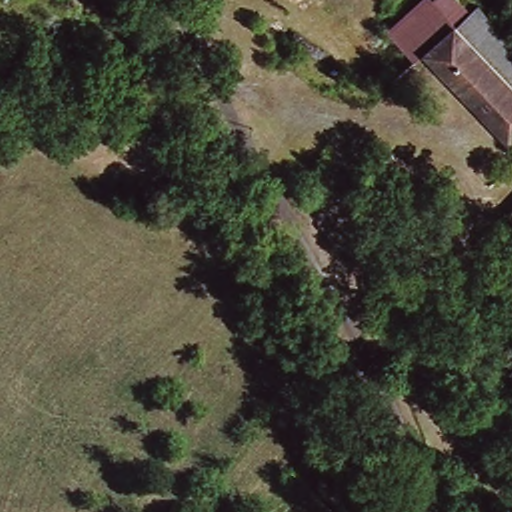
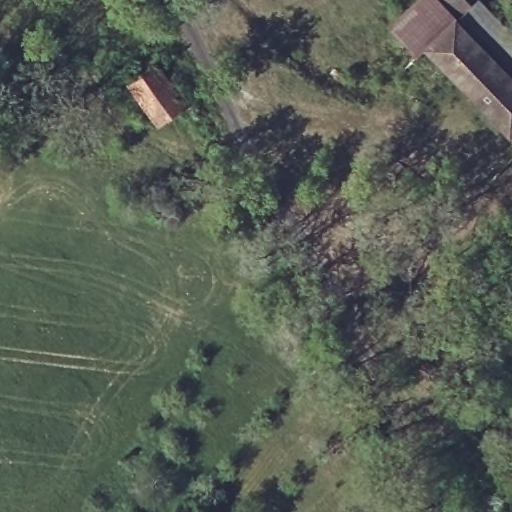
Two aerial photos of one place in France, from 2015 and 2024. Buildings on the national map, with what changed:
unchanged [(435,0),(462,0),(469,7),(476,0),(512,35),(512,135),(427,53),(417,63),(389,34),(421,0),(433,0),(434,0),(435,0)]
new [(188,105),(158,126),(130,86),(159,65),(188,105)]

